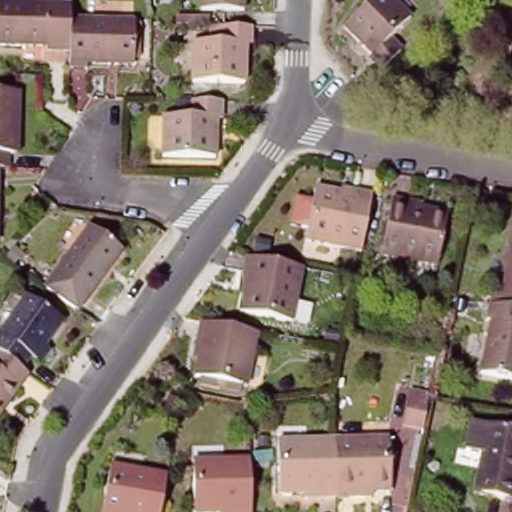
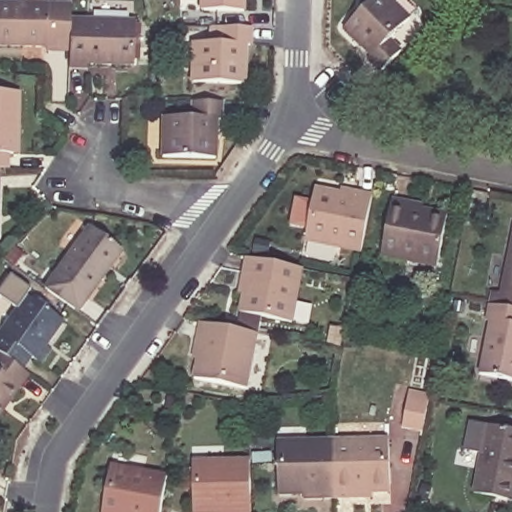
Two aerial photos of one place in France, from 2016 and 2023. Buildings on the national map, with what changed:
unchanged [(198,12),(198,0),(241,0),(241,12),(198,12)]
unchanged [(344,32),(376,0),(388,0),(411,21),(389,42),(402,55),(381,75),(369,62),(372,59),(344,32)]
unchanged [(0,47),(0,6),(69,9),(68,20),(67,53),(44,52),(45,49),(0,47)]
unchanged [(67,53),(68,20),(131,22),(128,67),(83,64),(82,70),(66,69),(67,53)]
unchanged [(243,46),(243,85),(189,84),(190,44),(219,44),(219,28),(248,29),(248,46),(243,46)]
unchanged [(16,129),(16,156),(11,156),(7,156),(6,170),(0,170),(0,94),(17,94),(16,129)]
unchanged [(216,120),(215,157),(163,156),(163,117),(193,117),(193,102),(222,102),(223,119),(216,120)]
unchanged [(315,191),(341,196),(341,191),(373,197),(362,252),(306,241),(315,191)]
unchanged [(422,212),(448,217),(437,267),(381,256),(392,201),(423,207),(422,212)]
unchanged [(85,229),(116,251),(119,253),(102,277),(75,312),(43,289),(85,229)]
unchanged [(499,309),(512,248),(512,312),(499,309)]
unchanged [(301,271),(289,324),(241,315),(244,295),(238,293),(239,287),(245,260),(301,271)]
unchanged [(45,346),(40,343),(37,347),(48,356),(38,370),(28,362),(19,375),(0,361),(0,331),(23,300),(59,326),(45,346)]
unchanged [(478,377),(489,324),(484,322),(488,307),(499,309),(512,312),(512,384),(478,377)]
unchanged [(195,357),(201,328),(257,340),(246,393),(196,383),(199,365),(193,364),(195,357)]
unchanged [(25,379),(5,406),(0,413),(0,361),(19,375),(25,379)]
unchanged [(407,395),(423,397),(418,422),(403,420),(407,395)]
unchanged [(512,434),(512,505),(477,497),(485,459),(471,456),(477,427),(492,430),(512,434)]
unchanged [(363,500),(335,501),(334,442),(389,441),(390,495),(372,495),(372,500),(363,500)]
unchanged [(304,495),(279,496),(278,442),(334,442),(335,501),(304,501),(304,495)]
unchanged [(193,462),(251,461),(250,512),(193,512),(193,462)]
unchanged [(108,466),(166,477),(159,512),(99,512),(108,466)]

